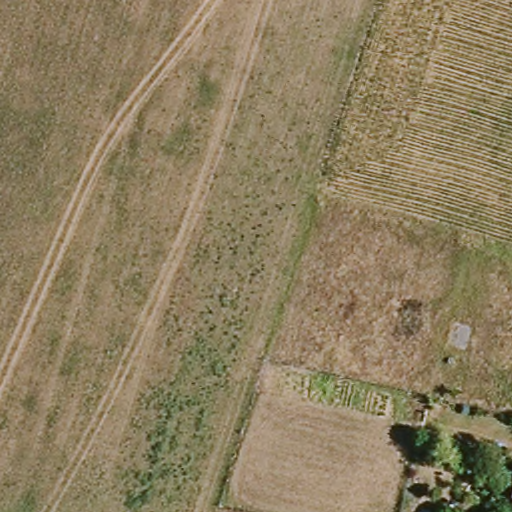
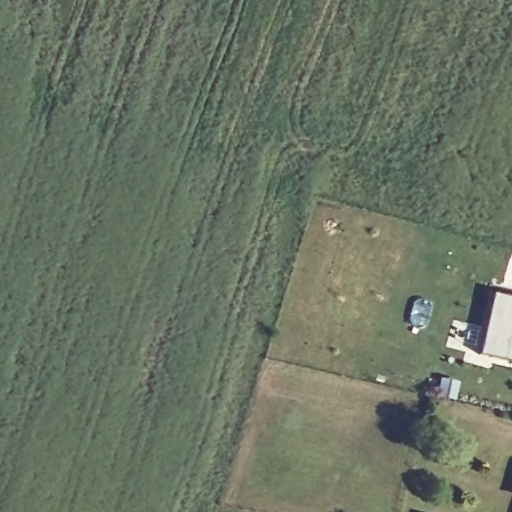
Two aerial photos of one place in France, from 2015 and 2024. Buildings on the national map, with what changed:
new [(512,362),(479,355),(493,294),(512,298),(512,362)]

